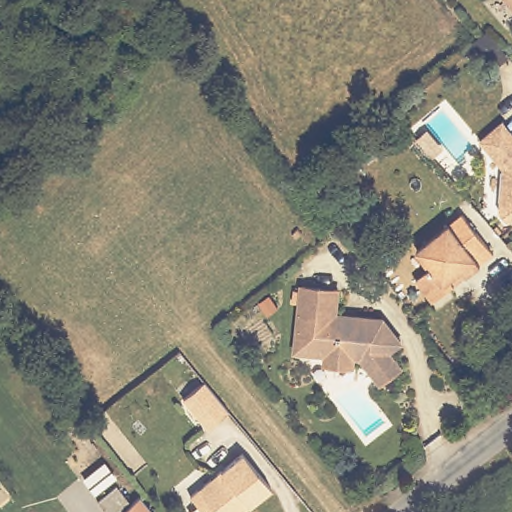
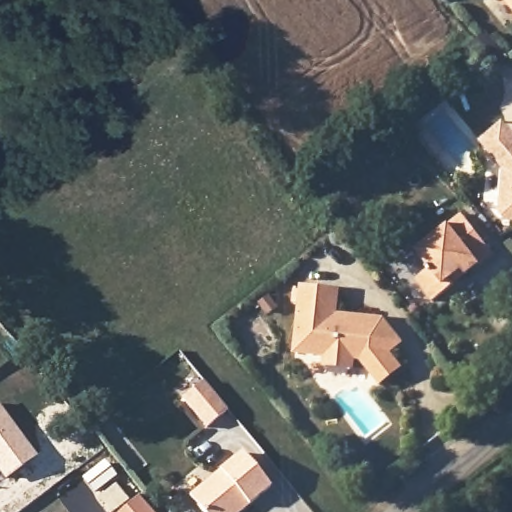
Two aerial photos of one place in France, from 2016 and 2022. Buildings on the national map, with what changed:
unchanged [(512,0),(512,3),(509,0),(512,0)]
unchanged [(512,64),(500,75),(487,60),(502,47),(512,59),(512,64)]
unchanged [(498,210),(501,164),(489,149),(478,136),(502,116),(512,128),(512,219),(508,219),(498,210)]
unchanged [(465,211),(495,251),(476,265),(432,298),(416,277),(431,266),(416,248),(465,211)]
unchanged [(403,344),(390,355),(402,369),(383,385),(363,361),(354,360),(354,370),(326,367),(326,357),(297,354),(304,288),(339,292),(337,316),(384,321),(403,344)]
unchanged [(233,410),(213,428),(187,398),(209,382),(233,410)]
new [(38,457),(4,481),(0,474),(0,405),(38,457)]
unchanged [(246,452),(275,490),(247,512),(206,512),(193,495),(246,452)]
unchanged [(133,503),(123,512),(109,512),(100,501),(118,486),(133,503)]
unchanged [(153,512),(127,512),(143,499),(153,512)]

